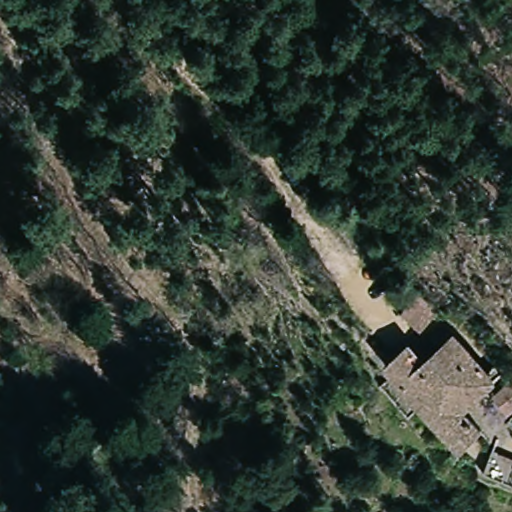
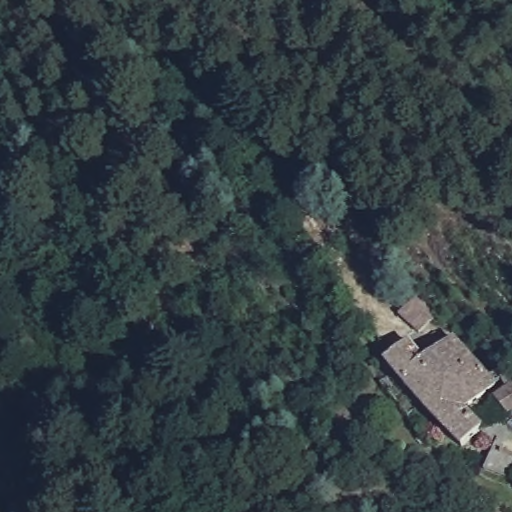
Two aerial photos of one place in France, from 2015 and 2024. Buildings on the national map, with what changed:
unchanged [(400,314),(418,295),(438,317),(420,335),(400,314)]
unchanged [(410,344),(424,361),(453,335),(497,385),(468,411),(484,432),(461,453),(385,366),(410,344)]
unchanged [(508,416),(494,400),(512,385),(512,412),(508,416)]

